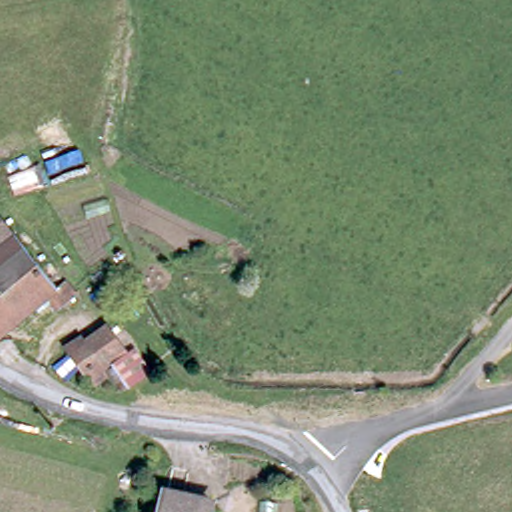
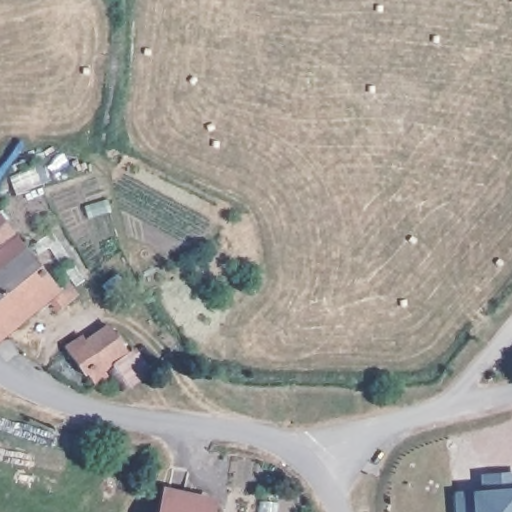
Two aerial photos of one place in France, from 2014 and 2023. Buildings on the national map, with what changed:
unchanged [(57,322),(47,304),(0,334),(0,218),(22,246),(63,293),(75,312),(57,322)]
unchanged [(140,347),(154,372),(128,388),(114,367),(101,374),(95,363),(88,367),(78,348),(98,337),(95,331),(107,324),(117,340),(118,341),(127,350),(140,347)]
new [(472,489),(480,489),(479,473),(512,471),(512,512),(456,512),(455,490),(472,489)]
unchanged [(213,500),(211,512),(162,512),(168,489),(213,500)]

